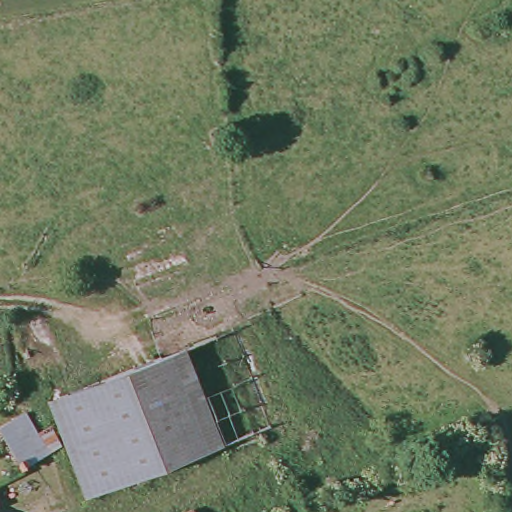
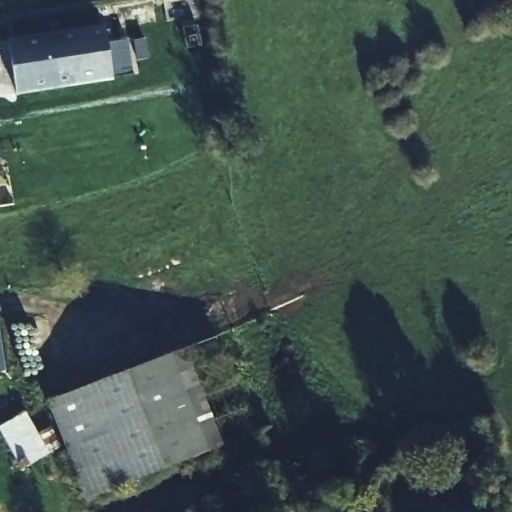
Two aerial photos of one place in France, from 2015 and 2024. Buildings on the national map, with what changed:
new [(17,93),(9,40),(108,23),(115,77),(17,93)]
unchanged [(185,347),(224,444),(85,499),(47,400),(185,347)]
unchanged [(41,458),(19,471),(16,466),(0,441),(0,420),(6,416),(17,409),(30,437),(41,458)]
unchanged [(195,508),(196,512),(186,512),(195,508)]

